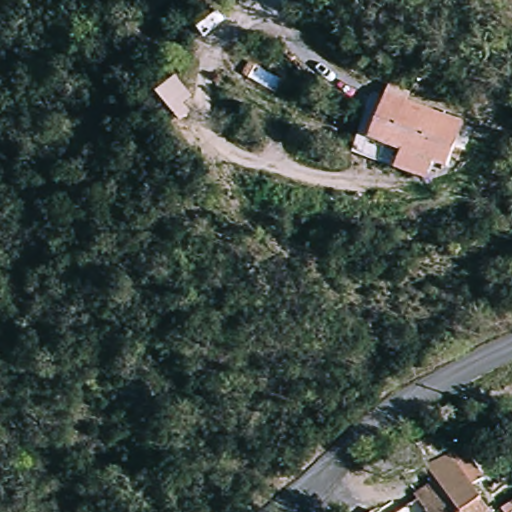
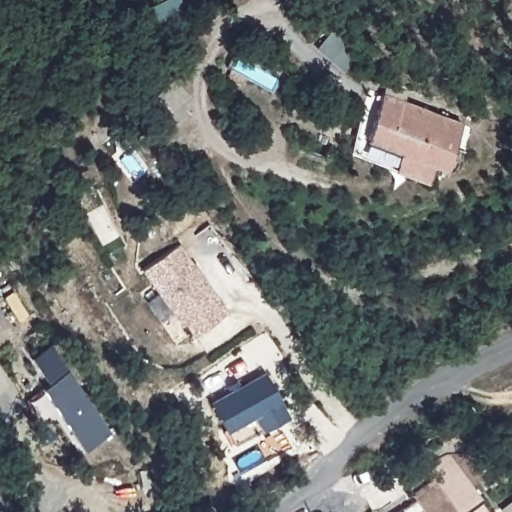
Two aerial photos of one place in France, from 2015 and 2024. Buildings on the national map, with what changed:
unchanged [(363,122),(380,89),(456,125),(445,147),(457,152),(447,175),(434,168),(432,170),(370,142),(380,123),(370,117),(367,125),(363,122)]
unchanged [(367,125),(370,117),(380,123),(370,142),(432,170),(423,187),(352,153),(367,125)]
new [(183,248),(230,315),(197,337),(188,325),(185,327),(148,272),(183,248)]
new [(72,372),(112,435),(86,452),(46,390),(72,372)]
new [(265,428),(255,413),(229,429),(214,405),(264,375),(279,400),(288,415),(265,428)]
unchanged [(439,487),(432,473),(460,457),(472,480),(493,512),(428,512),(420,498),(439,487)]

